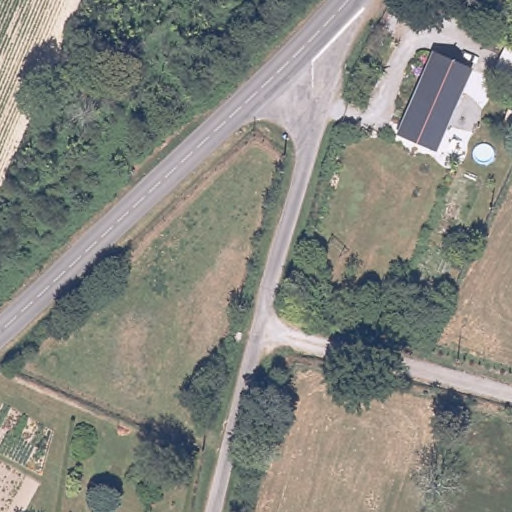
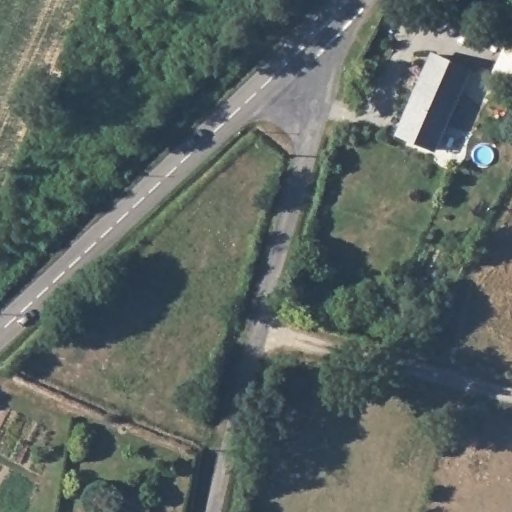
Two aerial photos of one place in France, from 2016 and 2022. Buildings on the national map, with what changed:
unchanged [(438,56),(472,71),(453,116),(441,146),(407,130),(419,101),(438,56)]
unchanged [(512,60),(512,77),(506,75),(512,60)]

